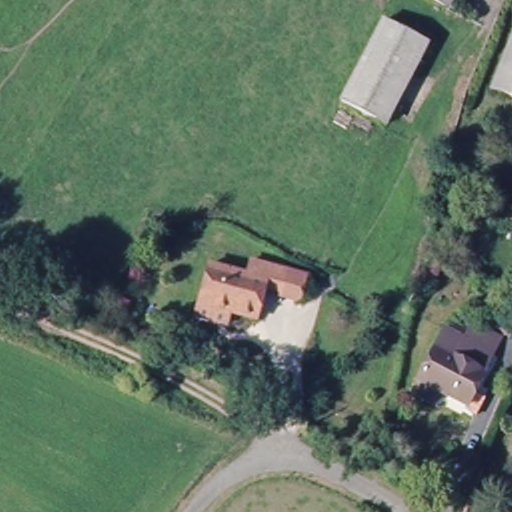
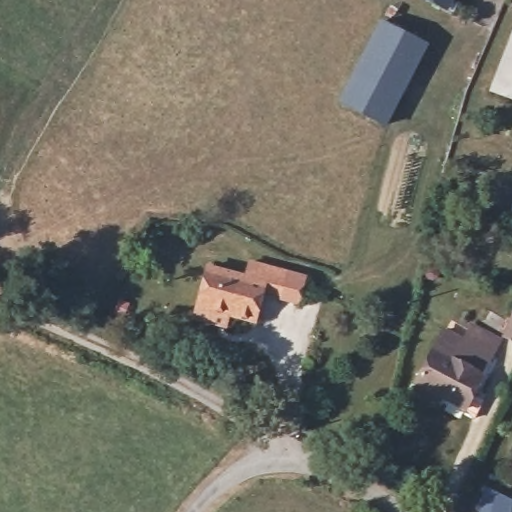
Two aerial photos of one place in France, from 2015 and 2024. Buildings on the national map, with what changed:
unchanged [(424,0),(456,0),(450,14),(424,0)]
unchanged [(392,121),(349,100),(387,21),(431,45),(392,121)]
unchanged [(512,27),(512,99),(491,91),(512,27)]
unchanged [(512,218),(511,218),(512,216),(512,218)]
unchanged [(196,318),(199,307),(214,261),(249,272),(252,260),(275,266),(293,271),(285,299),(267,293),(256,327),(232,319),(229,330),(196,318)]
unchanged [(487,395),(475,417),(414,385),(442,334),(462,343),(472,326),(502,341),(491,358),(476,390),(487,395)]
new [(512,495),(512,512),(482,512),(486,483),(512,495)]

